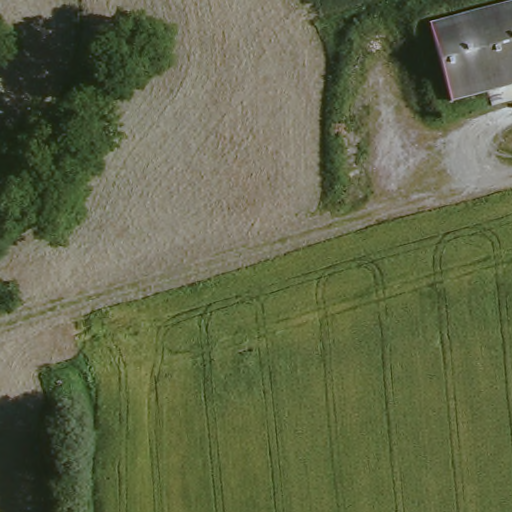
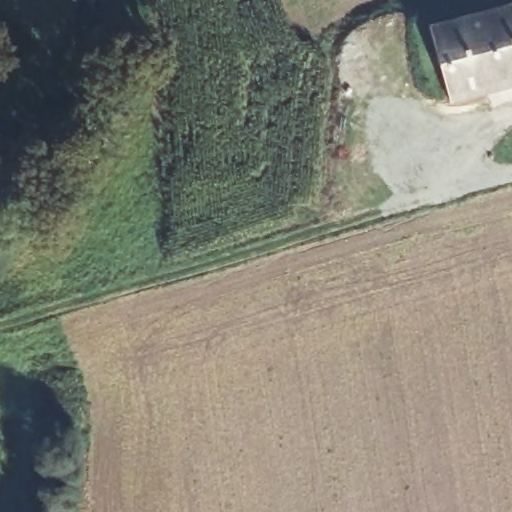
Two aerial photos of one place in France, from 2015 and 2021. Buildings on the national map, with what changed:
unchanged [(424,26),(512,3),(512,85),(443,102),(424,26)]

